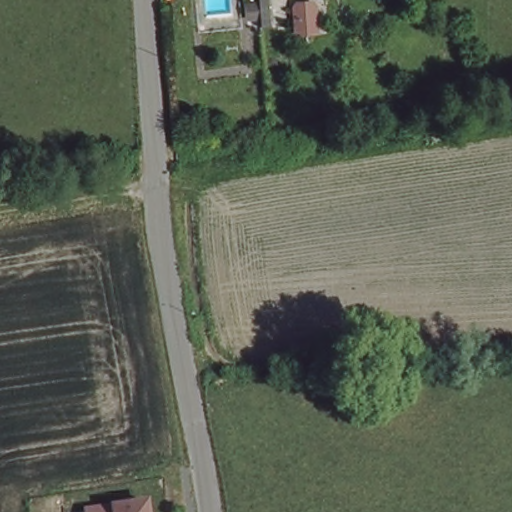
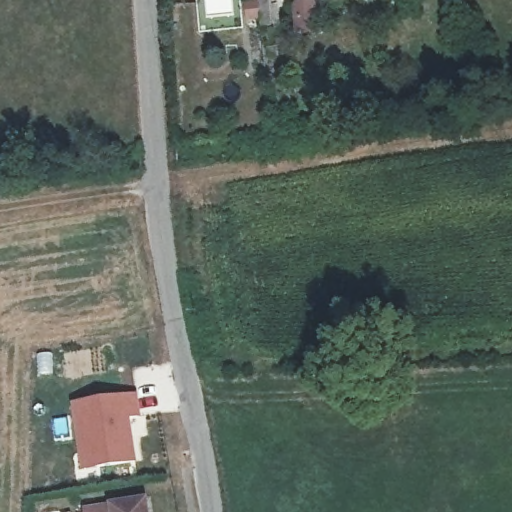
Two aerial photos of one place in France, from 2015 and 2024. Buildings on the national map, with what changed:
unchanged [(270,21),(255,22),(254,0),(270,0),(270,21)]
new [(136,390),(140,417),(130,419),(136,460),(78,469),(70,401),(136,390)]
unchanged [(150,502),(152,512),(85,512),(85,509),(150,502)]

